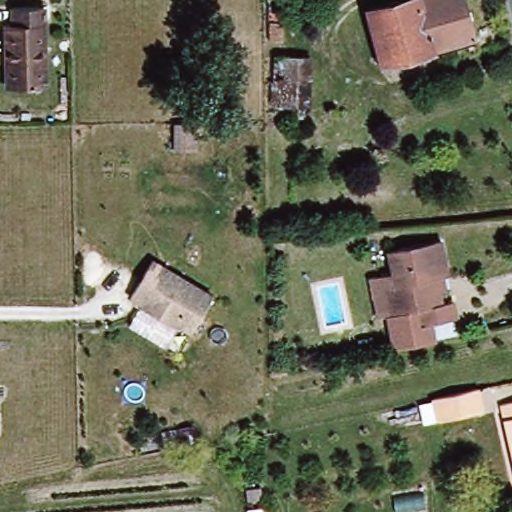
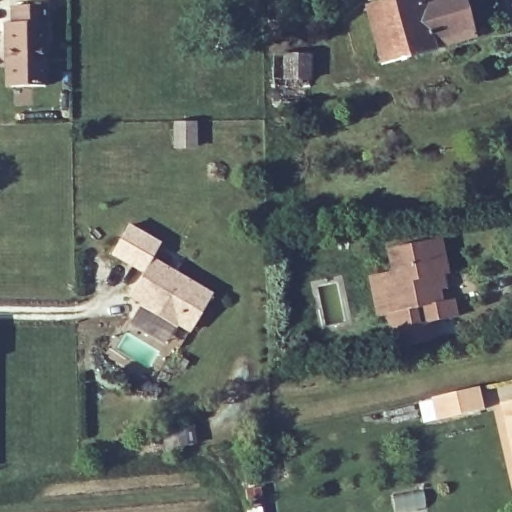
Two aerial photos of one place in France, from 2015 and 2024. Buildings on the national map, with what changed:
unchanged [(409,0),(461,0),(472,40),(378,65),(364,12),(409,0)]
unchanged [(13,28),(14,12),(45,12),(46,87),(9,88),(6,28),(13,28)]
unchanged [(255,64),(295,63),(298,130),(258,130),(255,64)]
new [(160,243),(149,261),(141,274),(110,257),(128,225),(160,243)]
unchanged [(377,277),(399,272),(394,249),(446,237),(455,272),(441,276),(448,302),(460,300),(464,317),(438,322),(441,340),(401,347),(394,315),(385,317),(377,277)]
unchanged [(186,335),(173,327),(170,330),(136,308),(137,304),(125,297),(149,261),(209,297),(186,335)]
unchanged [(461,391),(467,415),(427,423),(422,400),(461,391)]
unchanged [(499,406),(512,402),(512,443),(509,434),(499,406)]

